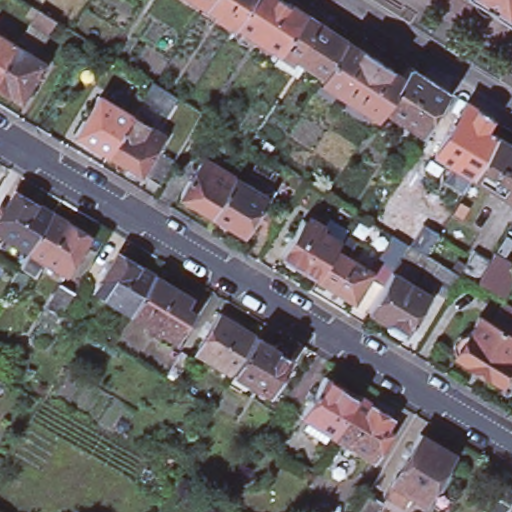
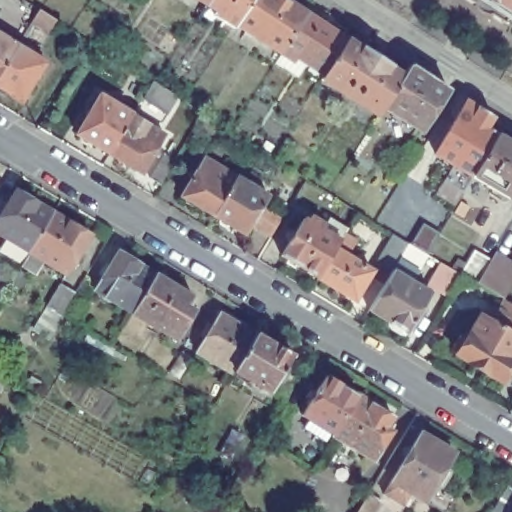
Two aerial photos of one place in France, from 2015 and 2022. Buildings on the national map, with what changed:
unchanged [(206,9),(193,0),(212,0),(206,9)]
unchanged [(236,28),(234,31),(205,11),(206,9),(212,0),(254,0),(236,28)]
unchanged [(326,79),(298,61),(294,66),(282,58),(236,28),(254,0),(281,0),(308,17),(319,25),(349,43),(332,69),(326,79)]
unchanged [(476,0),(512,0),(512,24),(476,0)]
unchanged [(40,14),(41,14),(56,23),(56,24),(48,36),(33,26),(40,14)]
unchanged [(0,72),(0,34),(18,44),(0,72)]
unchanged [(323,84),(326,79),(332,69),(349,43),(404,79),(384,111),(379,120),(323,84)]
unchanged [(4,94),(0,91),(0,72),(18,44),(45,61),(21,100),(9,92),(4,94)]
unchanged [(451,93),(423,137),(384,111),(404,79),(412,68),(451,93)]
unchanged [(169,118),(143,102),(154,85),(156,86),(180,101),(169,118)]
unchanged [(100,94),(133,114),(109,152),(91,141),(87,143),(80,139),(80,134),(77,133),(100,94)]
unchanged [(450,183),(458,170),(437,157),(454,126),(444,120),(458,100),(468,105),(469,105),(494,120),(494,121),(488,132),(499,139),(512,147),(512,202),(474,180),(467,193),(450,183)]
unchanged [(133,114),(164,133),(156,146),(158,147),(142,172),(138,170),(134,171),(128,168),(128,163),(109,152),(133,114)]
unchanged [(391,178),(412,146),(423,153),(402,186),(391,178)]
unchanged [(161,189),(151,183),(166,158),(176,164),(161,189)]
unchanged [(204,163),(236,181),(213,220),(197,210),(191,212),(186,208),(184,203),(181,201),(204,163)]
unchanged [(232,230),(226,232),(219,228),(218,222),(213,220),(236,181),(269,200),(246,238),(232,230)]
unchanged [(0,213),(13,193),(48,214),(38,233),(25,253),(0,238),(0,213)]
unchanged [(25,253),(38,233),(48,214),(86,238),(63,276),(25,253)]
unchanged [(424,301),(431,305),(419,324),(413,320),(403,337),(402,336),(395,338),(386,332),(384,325),(364,313),(379,289),(364,279),(356,295),(355,299),(351,303),(347,303),(342,301),(341,299),(313,281),(277,260),(299,223),(304,226),(307,221),(321,229),(319,234),(336,244),(340,237),(352,244),(343,260),(368,275),(374,264),(389,238),(391,239),(397,243),(404,248),(395,263),(415,275),(408,286),(427,297),(424,301)]
unchanged [(512,271),(512,281),(499,303),(473,288),(457,278),(471,254),(487,263),(490,258),(490,259),(512,271)]
unchanged [(114,258),(152,281),(128,320),(90,297),(114,258)]
unchanged [(424,290),(438,267),(457,278),(443,302),(424,290)]
unchanged [(30,280),(21,294),(9,288),(19,272),(30,280)]
unchanged [(189,304),(179,320),(187,325),(173,348),(128,320),(152,281),(189,304)]
unchanged [(33,331),(46,310),(45,309),(59,286),(74,295),(60,318),(47,340),(33,331)]
unchanged [(509,367),(499,386),(486,379),(485,380),(480,377),(475,385),(464,378),(469,370),(465,367),(466,366),(453,358),(450,349),(456,340),(464,336),(466,337),(477,319),(488,326),(501,304),(504,305),(512,310),(512,368),(509,367)]
unchanged [(258,337),(251,348),(236,373),(236,374),(233,377),(196,354),(221,314),(258,337)]
unchanged [(276,348),(276,346),(283,345),(290,350),(291,356),(291,357),(293,359),(271,395),(236,374),(236,373),(251,348),(258,337),(276,348)]
unchanged [(326,379),(359,398),(344,421),(334,438),(302,418),(326,379)]
unchanged [(393,419),(387,431),(392,434),(375,463),(334,438),(344,421),(359,398),(393,419)]
unchanged [(399,506),(379,494),(388,479),(417,431),(450,452),(440,468),(444,471),(434,488),(430,485),(421,500),(408,492),(401,503),(399,506)]
unchanged [(509,483),(512,485),(512,508),(509,512),(491,512),(499,500),(509,483)]
unchanged [(364,492),(378,500),(374,505),(370,512),(351,512),(361,497),(364,492)]

